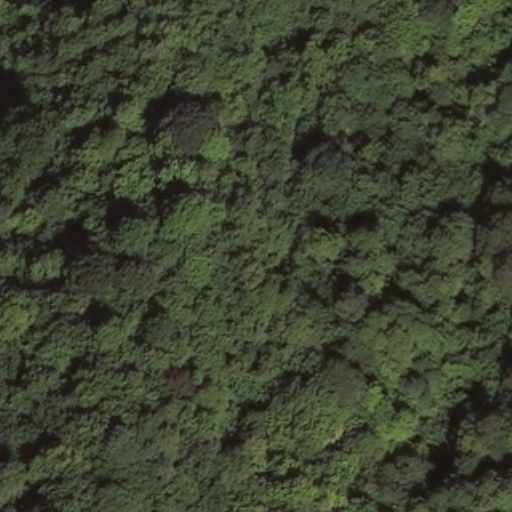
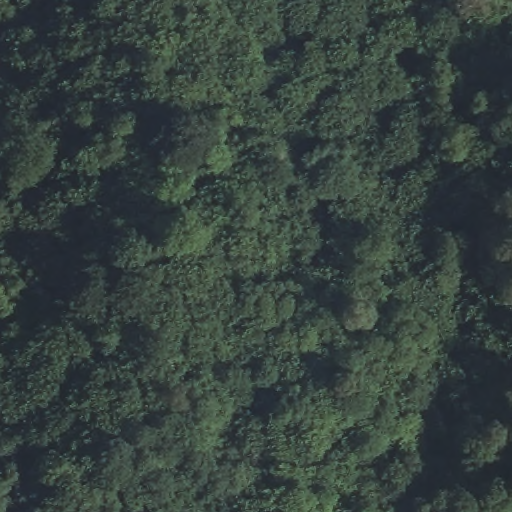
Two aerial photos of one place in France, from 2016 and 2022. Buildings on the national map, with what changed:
[]

